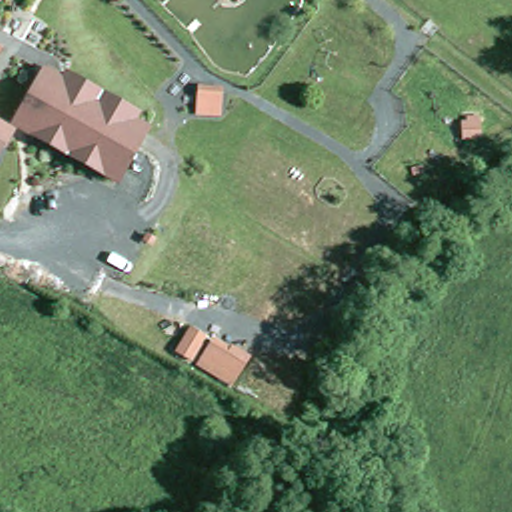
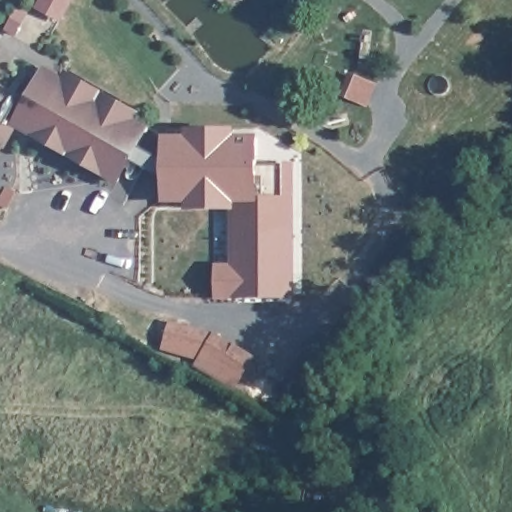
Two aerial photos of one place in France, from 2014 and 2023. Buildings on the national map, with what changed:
unchanged [(152,125),(119,184),(14,123),(44,66),(152,125)]
unchanged [(0,152),(0,116),(14,123),(0,152)]
new [(163,176),(133,159),(141,144),(164,157),(164,133),(184,133),(185,125),(236,125),(237,134),(261,133),(261,160),(260,202),(236,201),(236,209),(231,209),(184,208),(184,201),(161,200),(163,176)]
new [(236,209),(236,201),(260,202),(261,160),(293,162),(296,292),(234,291),(236,209)]
unchanged [(249,357),(233,383),(174,349),(190,324),(249,357)]

